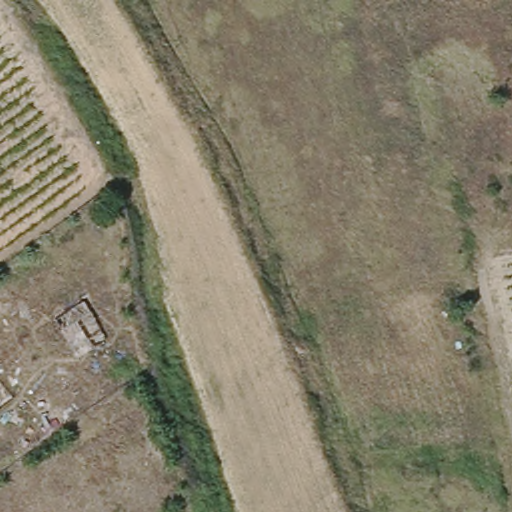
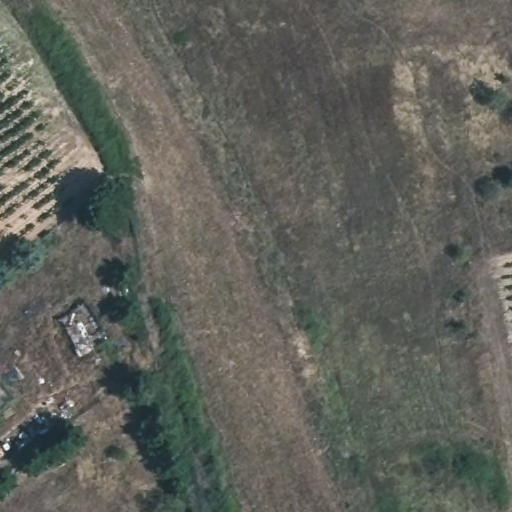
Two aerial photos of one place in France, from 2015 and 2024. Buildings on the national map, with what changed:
[]

